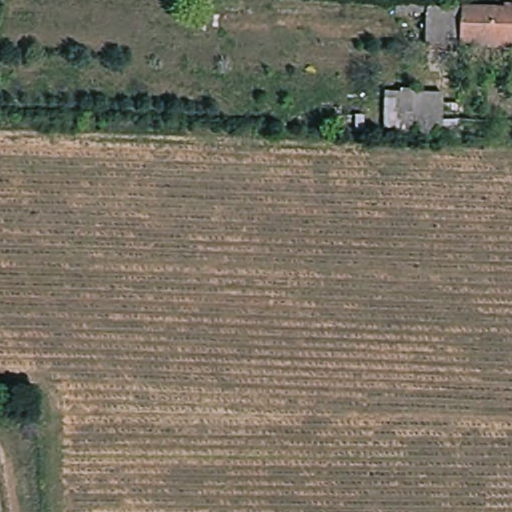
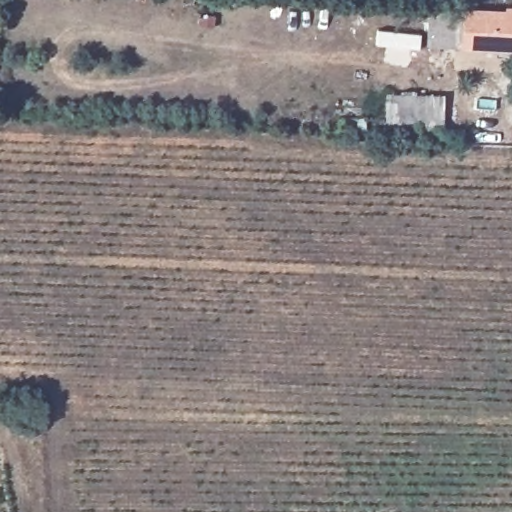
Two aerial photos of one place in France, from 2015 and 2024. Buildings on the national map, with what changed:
unchanged [(505,7),(512,8),(512,49),(427,46),(428,8),(504,12),(505,7)]
unchanged [(403,92),(403,88),(418,87),(419,94),(447,92),(447,101),(457,101),(457,128),(465,127),(466,138),(430,140),(430,134),(384,135),(383,92),(403,92)]

